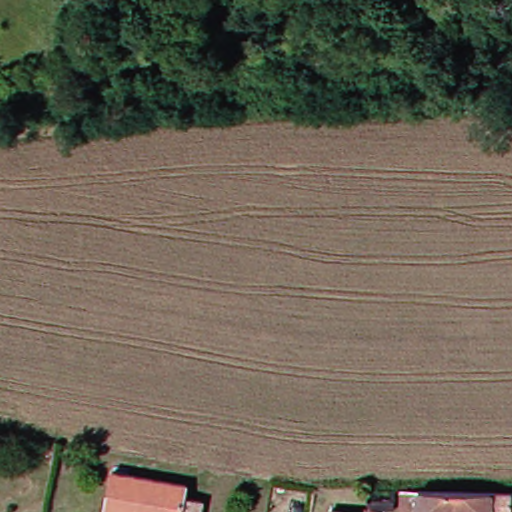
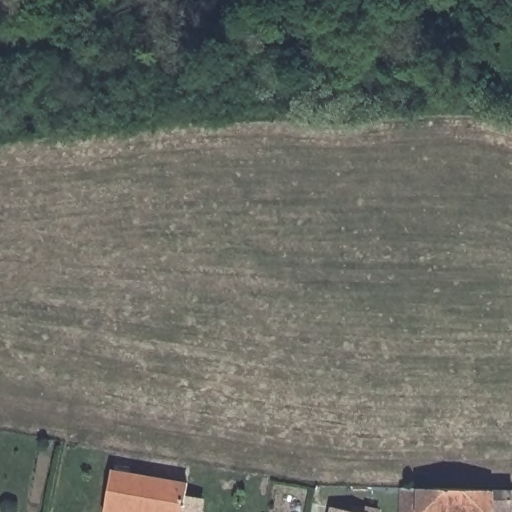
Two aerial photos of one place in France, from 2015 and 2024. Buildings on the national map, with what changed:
unchanged [(186,482),(185,490),(202,493),(199,512),(107,512),(115,470),(186,482)]
unchanged [(512,489),(512,512),(397,512),(397,488),(512,489)]
unchanged [(383,507),(382,512),(349,512),(351,502),(383,507)]

